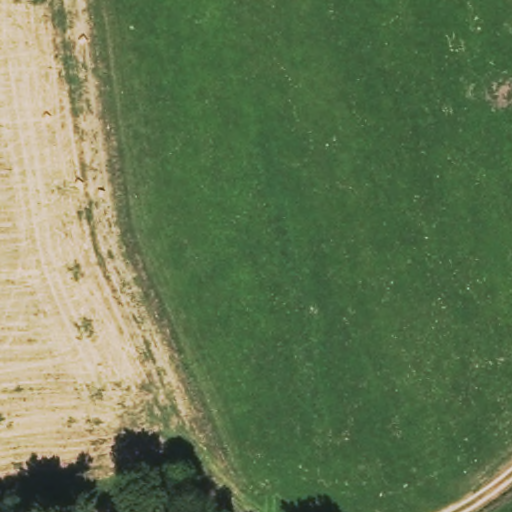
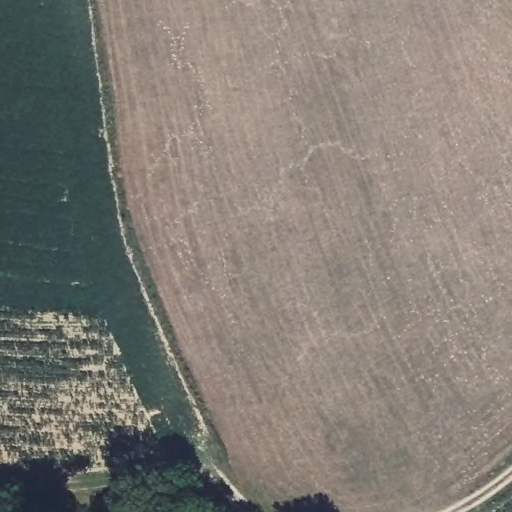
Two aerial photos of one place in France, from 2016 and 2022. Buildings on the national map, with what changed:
unchanged [(205,482),(197,507),(178,502),(183,477),(205,482)]

